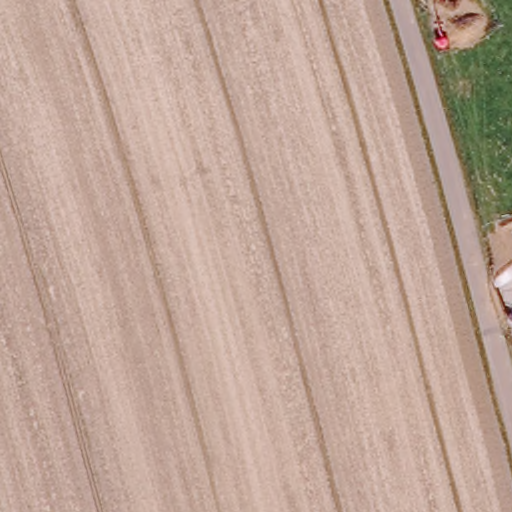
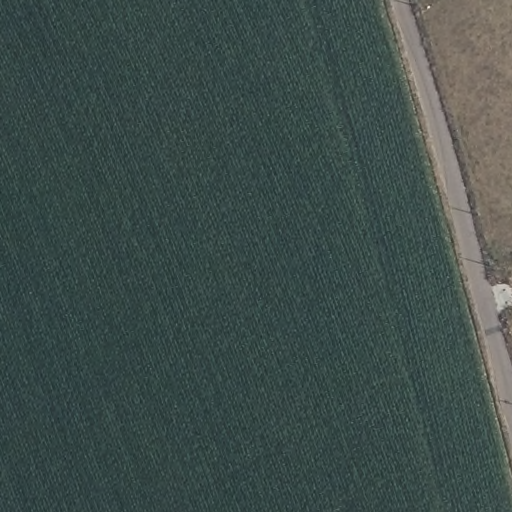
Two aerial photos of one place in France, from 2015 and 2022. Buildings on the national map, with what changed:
[]

